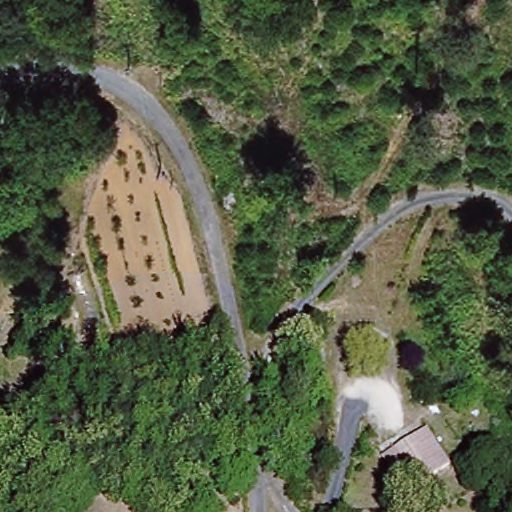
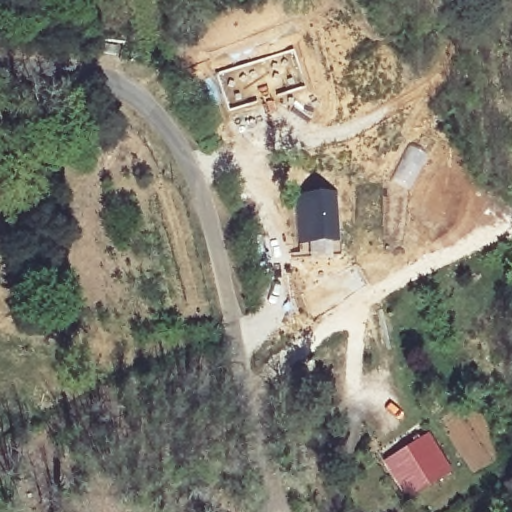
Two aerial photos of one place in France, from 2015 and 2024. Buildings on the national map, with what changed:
new [(336,191),(338,245),(331,246),(333,256),(306,257),(306,245),(298,245),(294,195),(336,191)]
unchanged [(410,494),(389,459),(431,437),(452,470),(410,494)]

